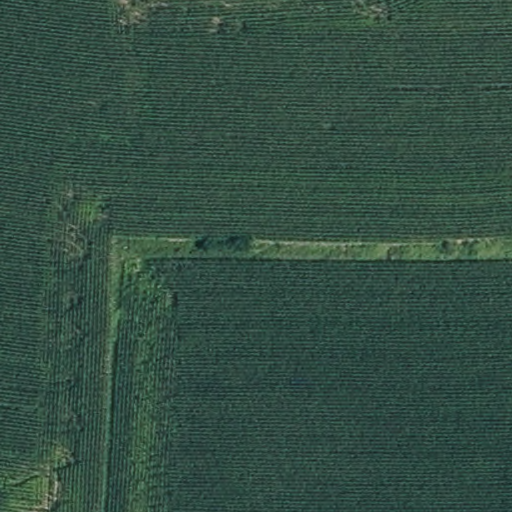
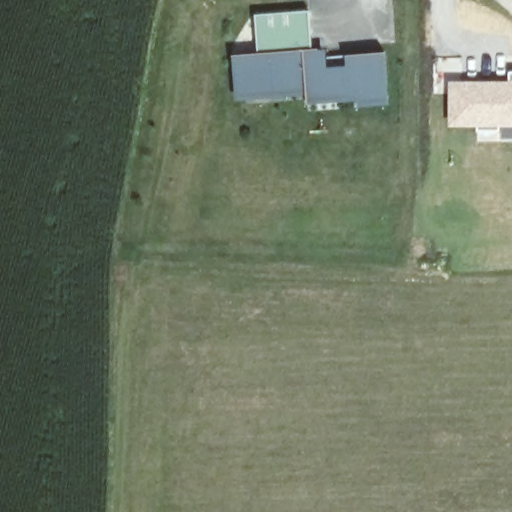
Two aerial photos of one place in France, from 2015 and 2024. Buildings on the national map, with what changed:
new [(313,51),(328,50),(330,69),(351,67),(349,58),(389,55),(393,105),(360,108),(359,102),(310,105),(309,95),(239,101),(235,59),(260,57),(259,18),(310,14),(313,51)]
new [(448,81),(508,80),(508,70),(512,71),(512,130),(477,132),(476,128),(448,127),(448,81)]

